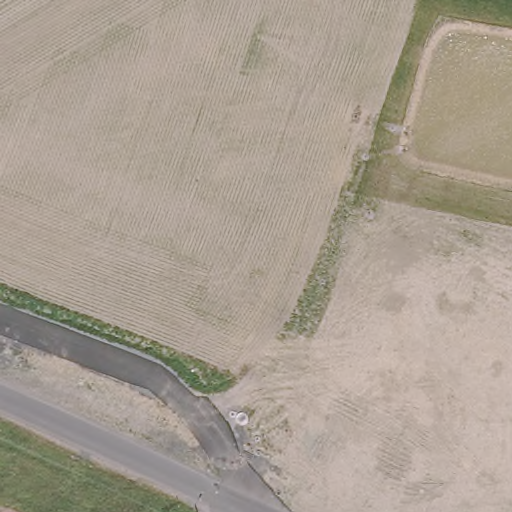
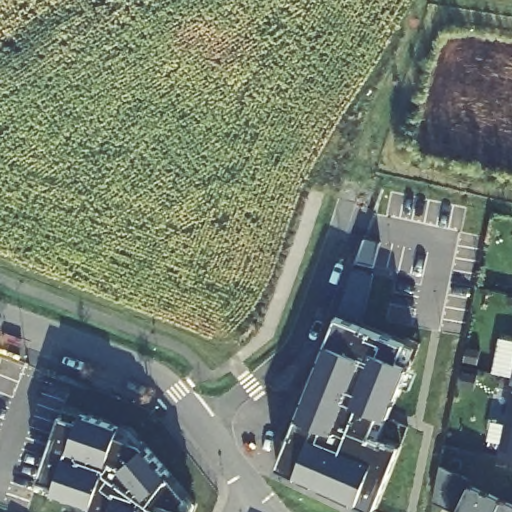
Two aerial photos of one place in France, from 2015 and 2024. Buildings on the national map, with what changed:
new [(401,447),(375,512),(371,512),(277,470),(337,316),(407,343),(400,361),(410,365),(397,398),(381,438),(372,435),(401,447)]
new [(500,454),(512,394),(512,457),(500,454)]
new [(53,493),(56,485),(39,480),(62,415),(65,406),(83,412),(121,426),(132,430),(143,443),(188,496),(196,505),(193,512),(90,512),(92,507),(53,493)]
new [(473,480),(471,485),(512,507),(512,512),(454,512),(433,502),(441,465),(473,480)]

